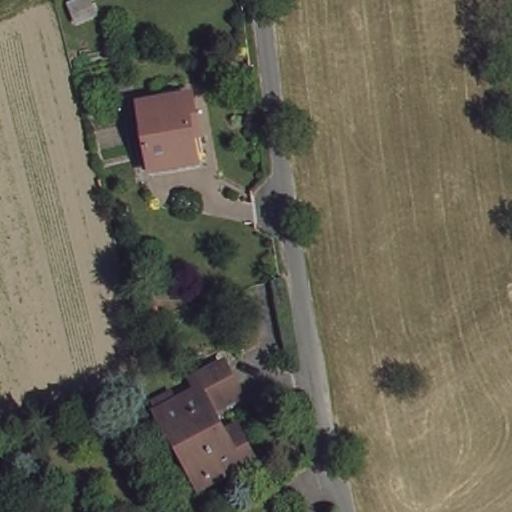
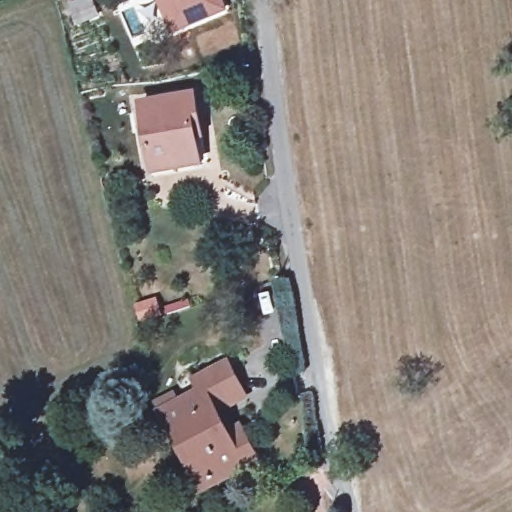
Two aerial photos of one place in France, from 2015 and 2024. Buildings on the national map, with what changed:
unchanged [(100,6),(76,16),(71,3),(79,0),(98,0),(100,6)]
new [(227,10),(170,36),(155,0),(223,0),(227,10)]
unchanged [(152,168),(142,110),(195,100),(201,132),(195,133),(200,164),(201,168),(177,172),(153,176),(152,168)]
unchanged [(168,439),(164,442),(155,423),(157,422),(153,413),(170,405),(174,414),(196,403),(190,392),(223,374),(238,403),(210,418),(223,444),(236,437),(240,446),(253,471),(210,493),(199,498),(187,475),(168,439)]
unchanged [(71,434),(60,437),(55,422),(66,419),(71,434)]

